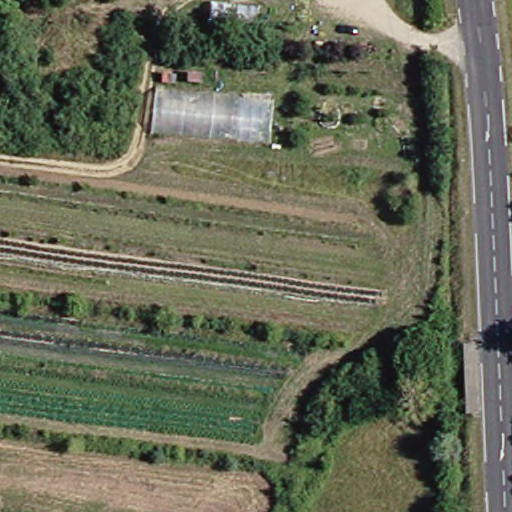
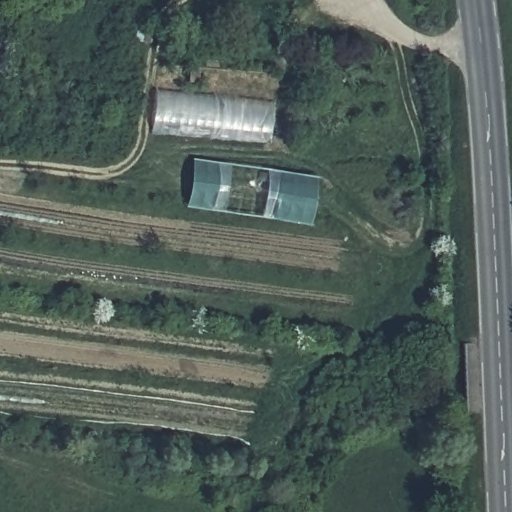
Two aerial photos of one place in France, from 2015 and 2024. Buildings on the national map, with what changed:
unchanged [(268,105),(265,151),(148,142),(153,97),(268,105)]
new [(316,180),(310,227),(285,224),(190,210),(195,160),(316,180)]

